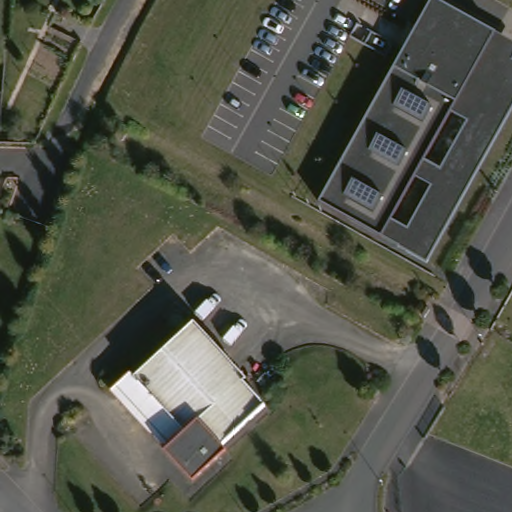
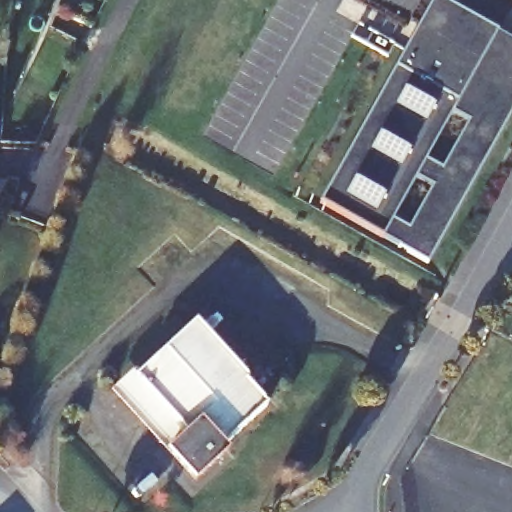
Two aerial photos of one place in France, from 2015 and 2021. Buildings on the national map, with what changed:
unchanged [(435,0),(512,41),(512,111),(426,262),(320,203),(435,0)]
unchanged [(25,9),(35,10),(34,27),(22,26),(25,9)]
unchanged [(202,485),(197,480),(170,449),(191,428),(142,374),(205,317),(255,372),(247,378),(271,404),(227,444),(231,449),(236,455),(202,485)]
unchanged [(115,388),(137,368),(142,374),(191,428),(170,449),(115,388)]

